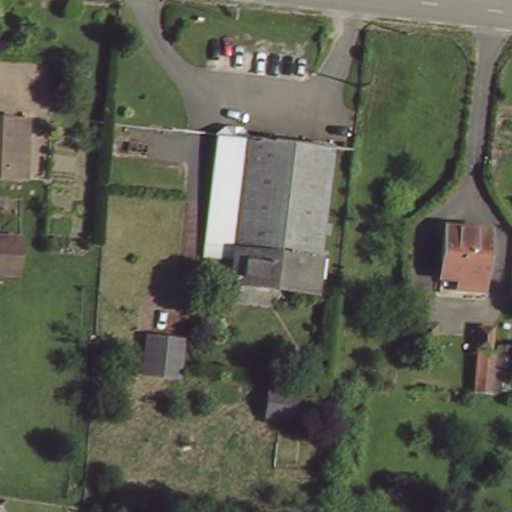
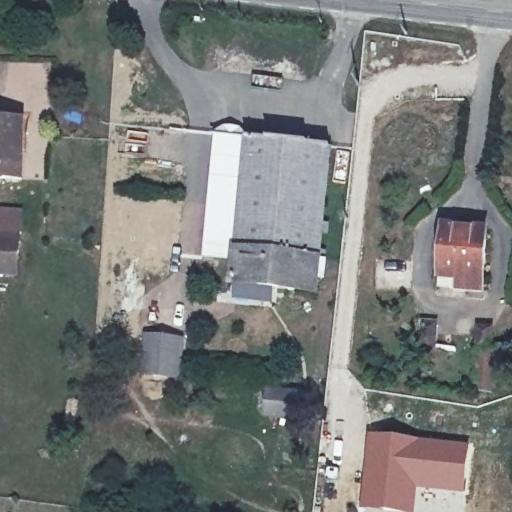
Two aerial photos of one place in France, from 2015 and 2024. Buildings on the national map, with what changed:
unchanged [(22,174),(0,174),(0,119),(24,119),(22,174)]
unchanged [(316,297),(231,287),(234,259),(203,256),(215,134),(227,126),(238,127),(246,138),(331,146),(316,297)]
unchanged [(481,295),(455,291),(457,281),(439,278),(445,232),(489,237),(481,295)]
unchanged [(0,238),(19,239),(17,275),(0,274),(0,238)]
unchanged [(425,338),(428,318),(442,320),(439,340),(425,338)]
unchanged [(484,345),(487,327),(500,329),(498,347),(484,345)]
unchanged [(180,378),(143,375),(146,340),(182,342),(180,378)]
new [(475,349),(495,350),(493,392),(472,391),(475,349)]
unchanged [(299,418),(266,415),(268,391),(301,394),(299,418)]
new [(369,434),(469,445),(464,493),(417,489),(414,512),(395,512),(358,507),(369,434)]

